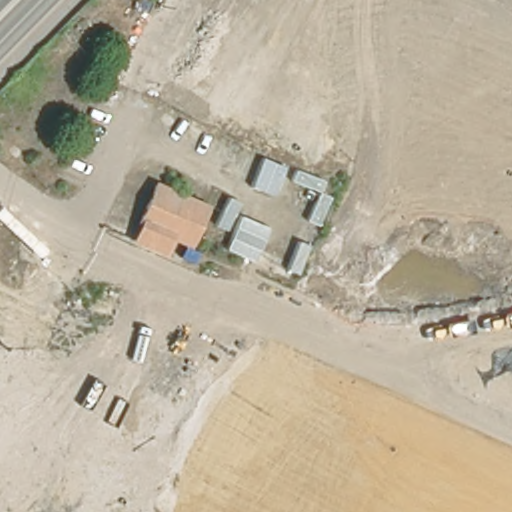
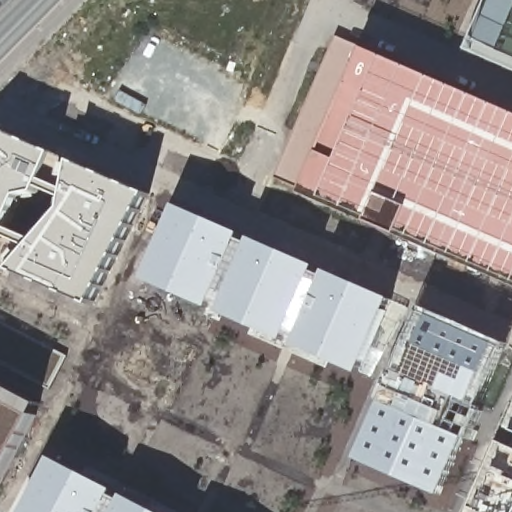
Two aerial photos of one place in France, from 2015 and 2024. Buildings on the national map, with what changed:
new [(490,0),(512,0),(512,68),(470,51),(490,0)]
new [(512,274),(302,177),(366,46),(512,106),(512,274)]
new [(146,190),(89,307),(0,265),(0,135),(6,129),(146,190)]
demolished [(203,205),(187,244),(169,236),(162,253),(131,240),(153,184),(203,205)]
new [(390,301),(359,372),(148,280),(178,208),(390,301)]
new [(503,346),(442,497),(358,460),(426,316),(503,346)]
new [(0,362),(0,321),(66,356),(49,388),(0,362)]
new [(38,408),(0,482),(0,390),(38,408)]
new [(512,512),(481,512),(471,508),(512,416),(512,512)]
new [(27,512),(55,460),(156,512),(27,512)]

